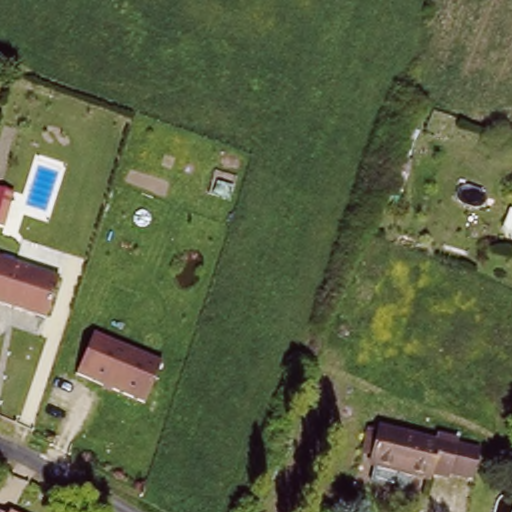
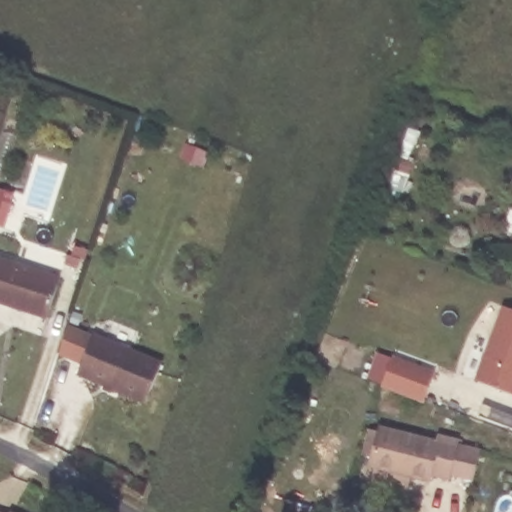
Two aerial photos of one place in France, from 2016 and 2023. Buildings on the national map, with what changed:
unchanged [(47,317),(0,302),(0,256),(60,274),(47,317)]
new [(502,306),(512,310),(512,394),(474,380),(502,306)]
unchanged [(162,361),(146,400),(78,371),(94,331),(162,361)]
new [(390,357),(434,373),(424,403),(379,387),(390,357)]
unchanged [(437,433),(439,427),(456,431),(455,436),(480,442),(472,469),(448,462),(446,468),(430,464),(427,472),(412,468),(408,483),(372,474),(377,460),(370,457),(378,421),(437,433)]
unchanged [(10,511),(12,512),(9,512),(10,511)]

